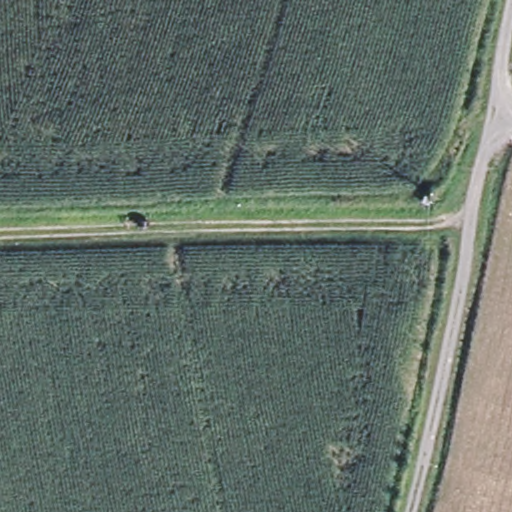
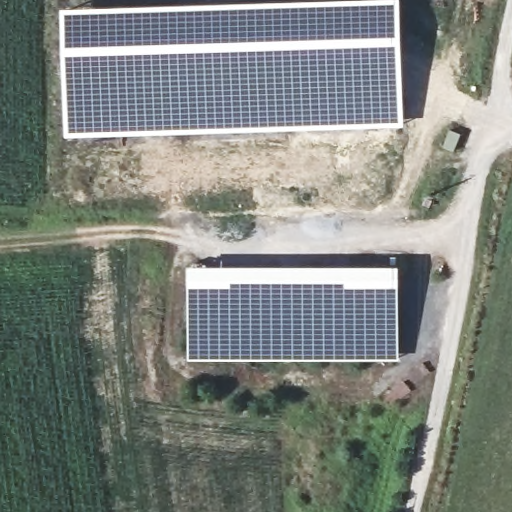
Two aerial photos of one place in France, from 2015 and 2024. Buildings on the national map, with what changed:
new [(400,0),(404,125),(185,133),(65,136),(61,9),(329,0),(400,0)]
new [(190,267),(400,267),(398,360),(190,359),(190,267)]

